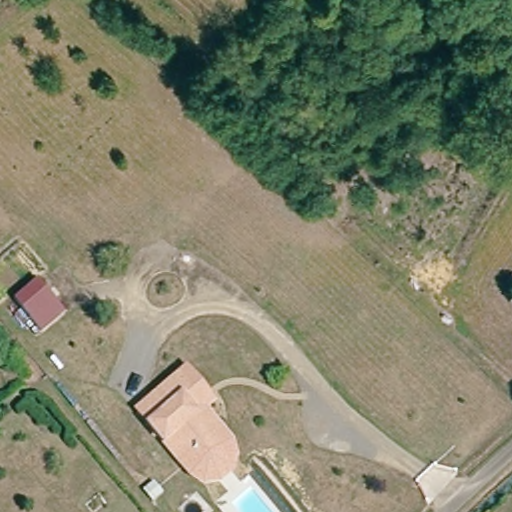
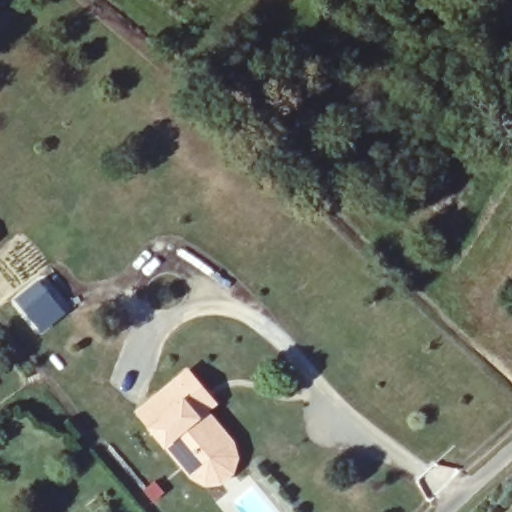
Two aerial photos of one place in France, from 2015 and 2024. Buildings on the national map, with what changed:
unchanged [(43,333),(11,295),(35,273),(70,314),(43,333)]
unchanged [(217,400),(209,407),(227,430),(180,470),(130,409),(185,363),(217,400)]
unchanged [(227,430),(237,440),(241,453),(236,471),(223,483),(208,487),(191,477),(180,470),(227,430)]

